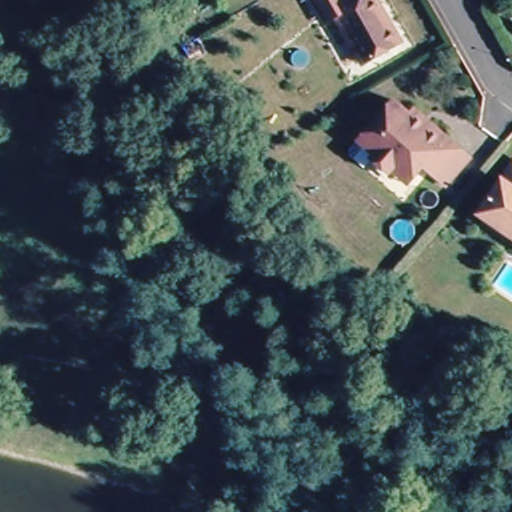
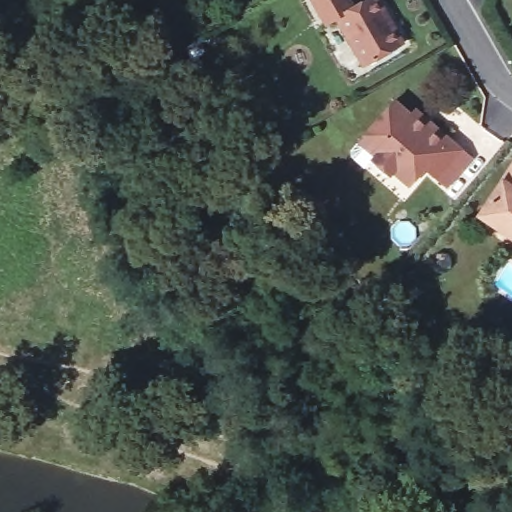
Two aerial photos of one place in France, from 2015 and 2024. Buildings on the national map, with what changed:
unchanged [(364,63),(337,15),(326,21),(314,0),(351,0),(353,4),(361,0),(379,0),(402,41),(364,63)]
unchanged [(392,174),(387,181),(369,166),(375,159),(358,146),(393,104),(410,118),(414,112),(448,140),(471,160),(446,189),(424,170),(415,180),(409,188),(392,174)]
unchanged [(512,169),(512,238),(480,215),(512,169)]

